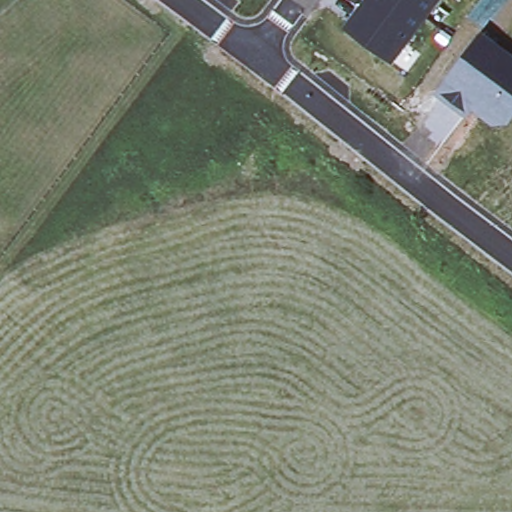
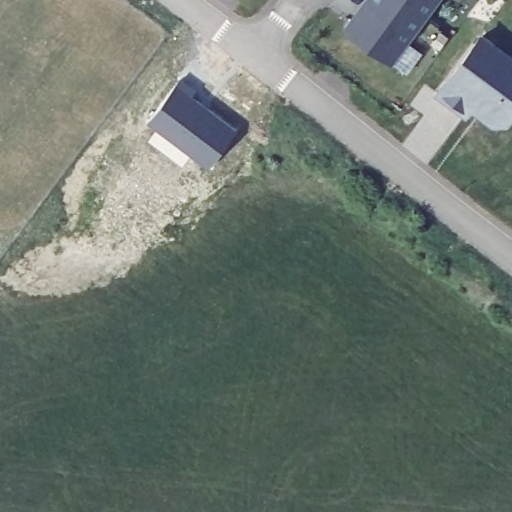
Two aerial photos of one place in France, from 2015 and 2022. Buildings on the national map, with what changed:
unchanged [(390,63),(347,27),(367,0),(436,0),(390,63)]
unchanged [(512,60),(512,115),(506,122),(496,124),(473,107),(466,116),(438,95),(482,35),(512,60)]
new [(239,132),(210,171),(148,126),(173,90),(239,132)]

